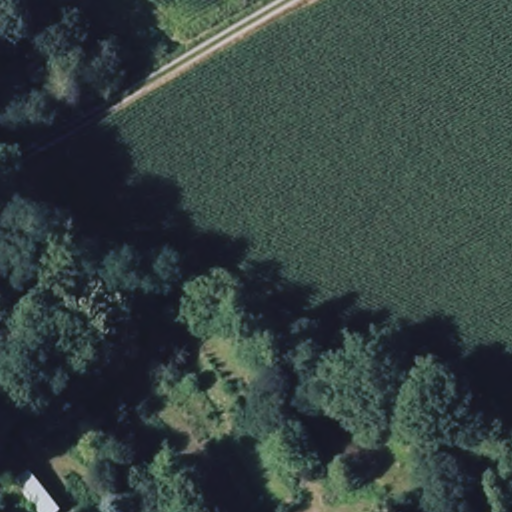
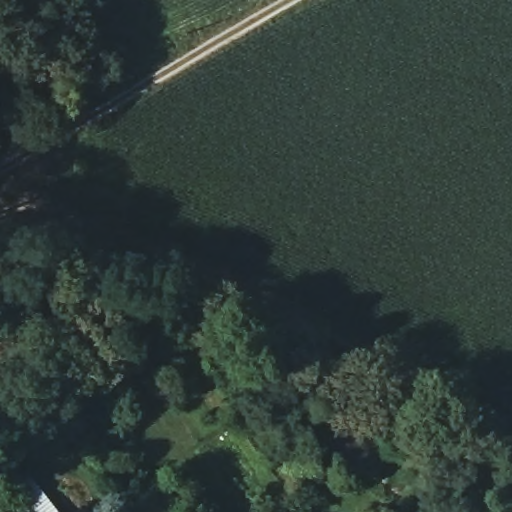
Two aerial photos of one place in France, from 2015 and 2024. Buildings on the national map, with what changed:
unchanged [(31,480),(57,512),(32,512),(14,490),(31,480)]

